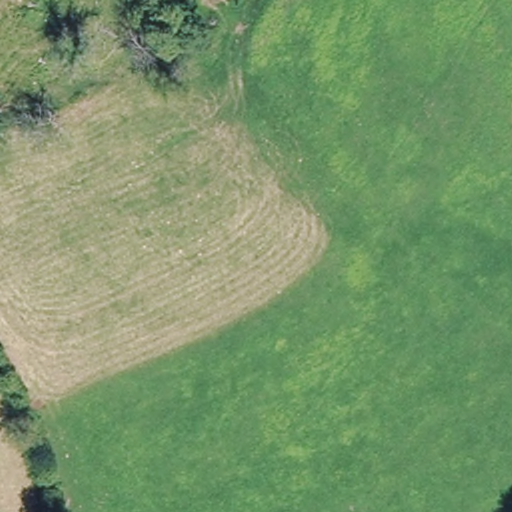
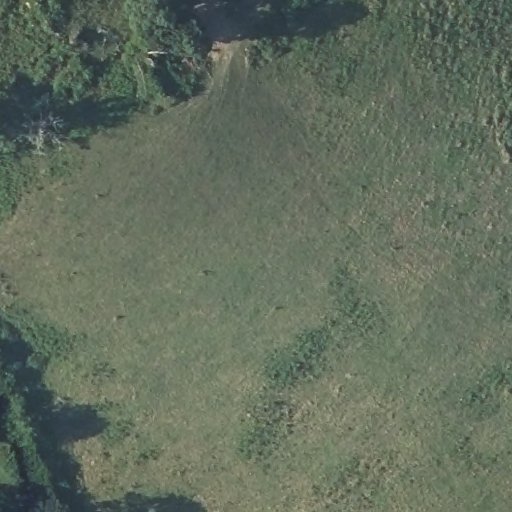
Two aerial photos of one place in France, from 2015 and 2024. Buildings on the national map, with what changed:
unchanged [(253,2),(249,0),(254,0),(253,2)]

